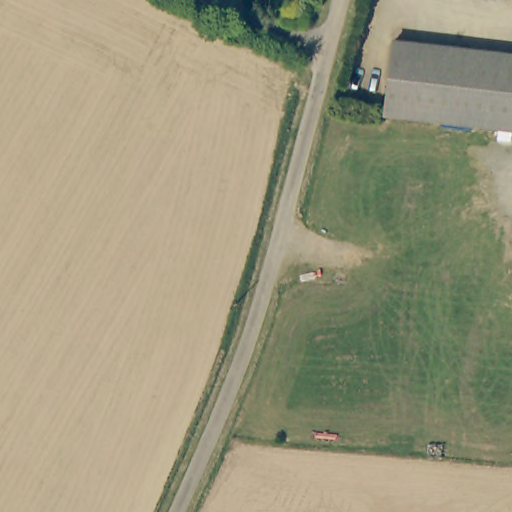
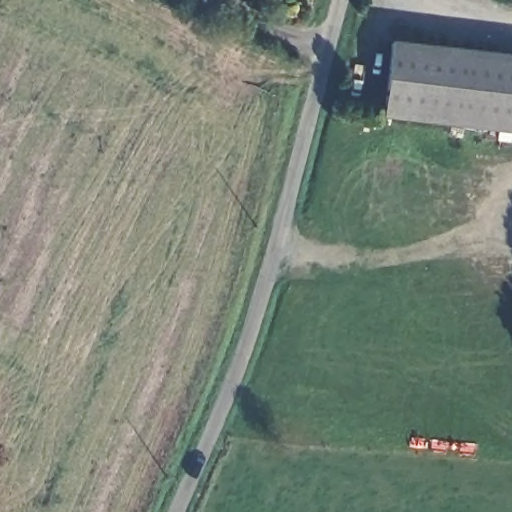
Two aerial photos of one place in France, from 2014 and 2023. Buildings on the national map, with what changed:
unchanged [(512,52),(512,128),(384,112),(393,37),(512,52)]

